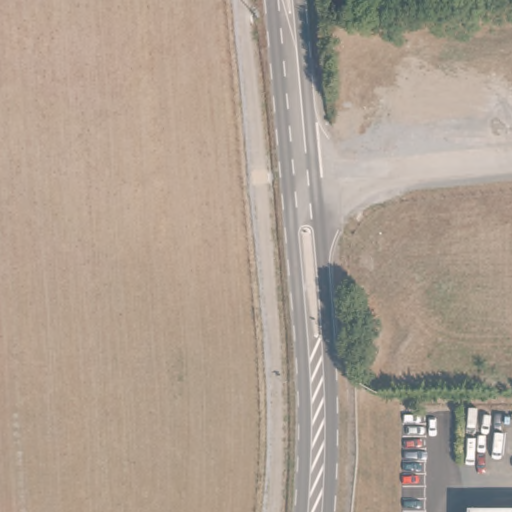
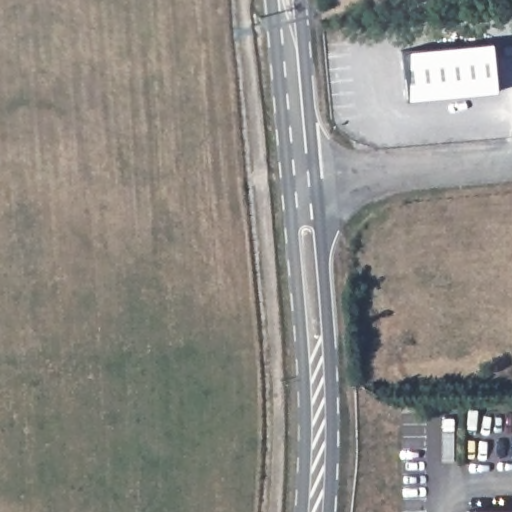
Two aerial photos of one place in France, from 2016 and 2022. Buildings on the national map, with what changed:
new [(403,100),(398,49),(490,42),(494,90),(403,100)]
unchanged [(512,508),(512,512),(465,512),(465,507),(512,508)]

